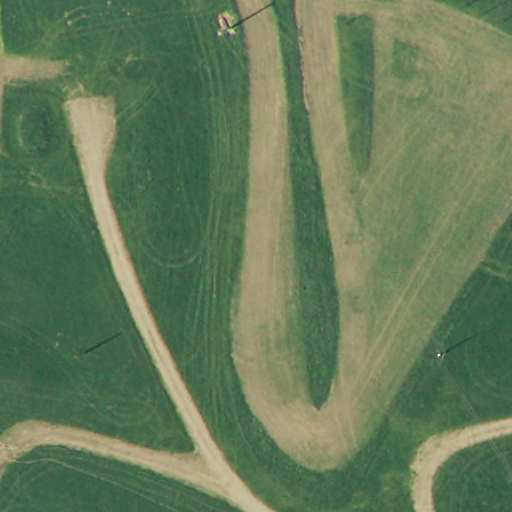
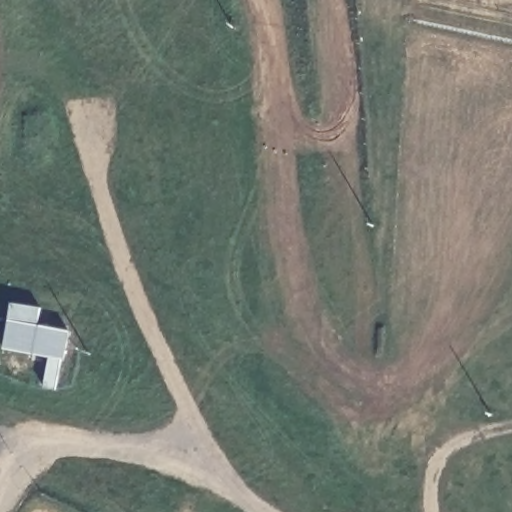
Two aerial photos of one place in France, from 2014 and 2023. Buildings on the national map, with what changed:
new [(64,360),(61,359),(55,390),(42,387),(49,357),(2,348),(9,319),(69,330),(64,360)]

